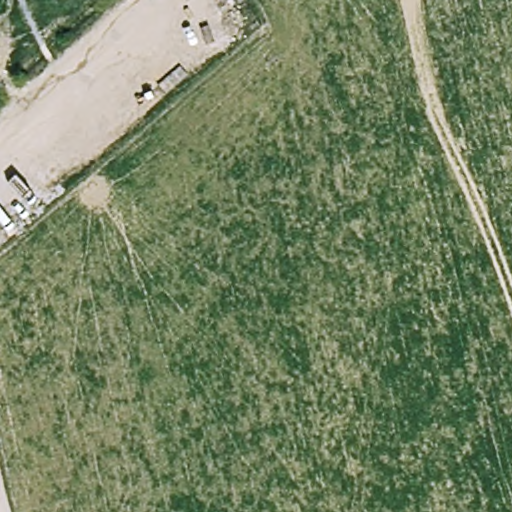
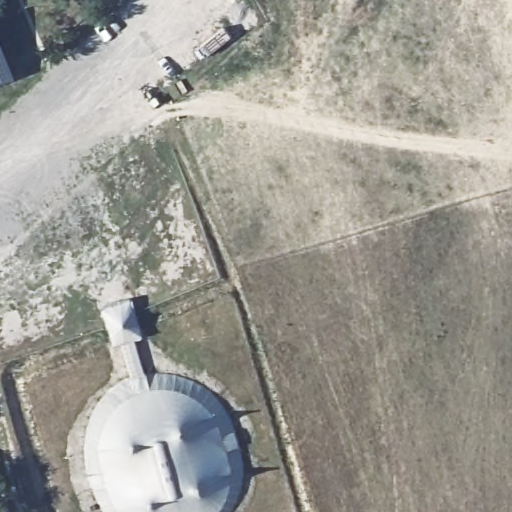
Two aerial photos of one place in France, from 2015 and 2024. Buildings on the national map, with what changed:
new [(12,77),(0,82),(0,42),(12,77)]
new [(109,410),(118,400),(127,393),(134,390),(119,342),(112,343),(100,306),(128,296),(140,335),(133,337),(149,386),(165,386),(177,388),(191,394),(204,403),(215,418),(221,431),(226,451),(229,465),(229,480),(225,495),(216,511),(215,512),(120,512),(116,507),(105,483),(97,460),(96,442),(99,428),(103,420),(109,410)]

